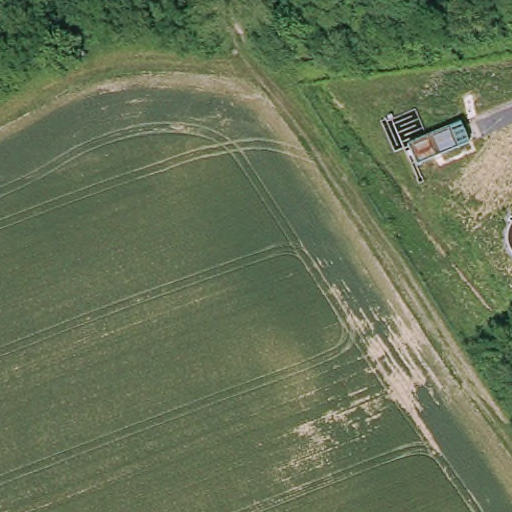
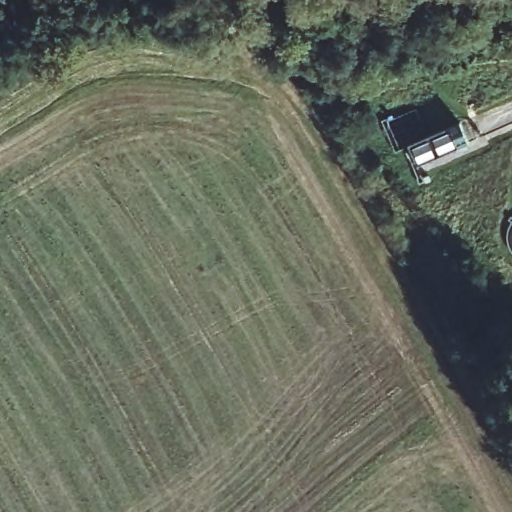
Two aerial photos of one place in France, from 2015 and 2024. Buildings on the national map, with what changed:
unchanged [(465,121),(470,140),(412,161),(405,142),(465,121)]

